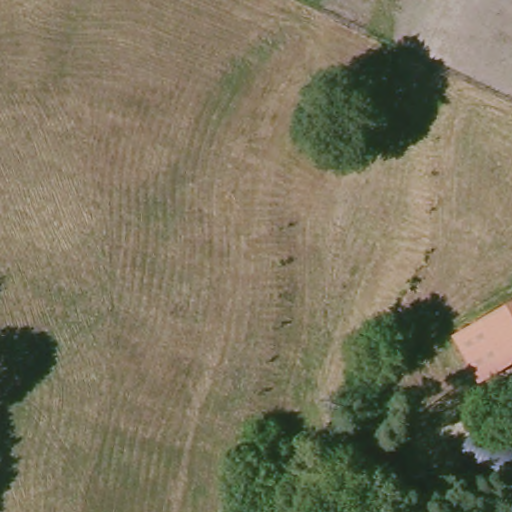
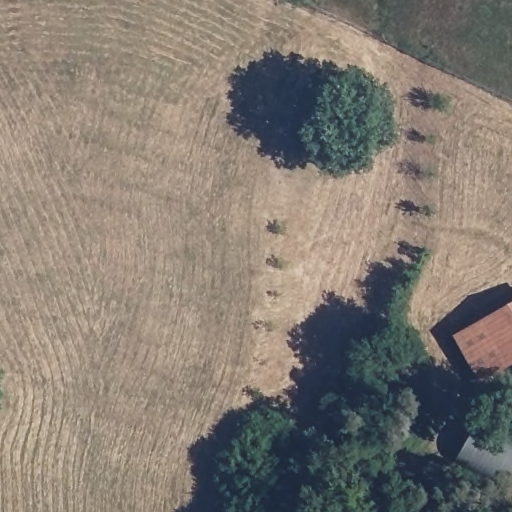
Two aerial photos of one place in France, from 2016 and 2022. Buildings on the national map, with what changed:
unchanged [(457,336),(512,308),(512,364),(480,381),(457,336)]

